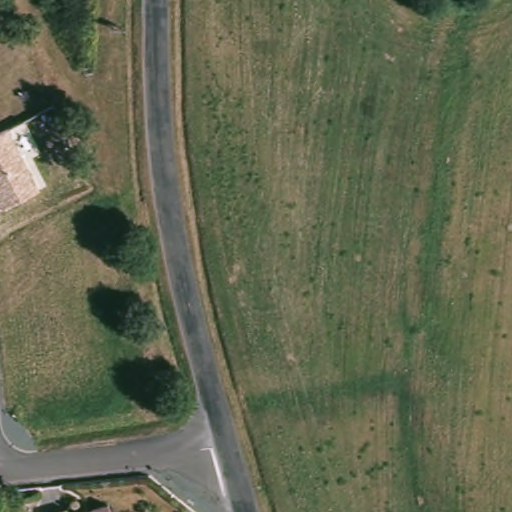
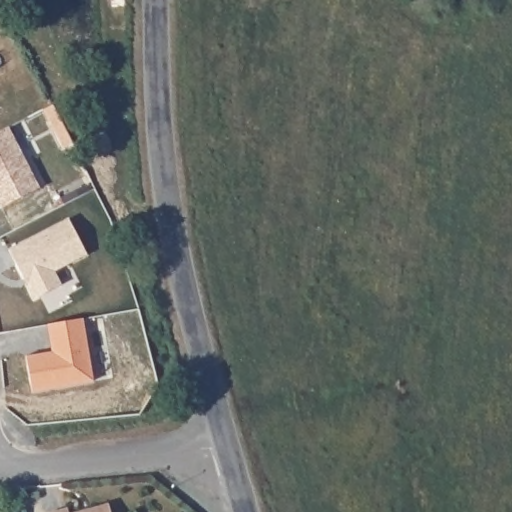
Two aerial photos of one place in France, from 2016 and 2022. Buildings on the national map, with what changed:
unchanged [(40,189),(1,208),(0,205),(0,132),(9,128),(40,189)]
new [(55,271),(61,284),(33,299),(9,251),(69,220),(86,254),(55,271)]
new [(33,392),(29,355),(51,351),(48,324),(82,318),(94,382),(33,392)]
unchanged [(108,505),(110,512),(82,512),(108,505)]
unchanged [(67,509),(68,512),(56,512),(67,509)]

